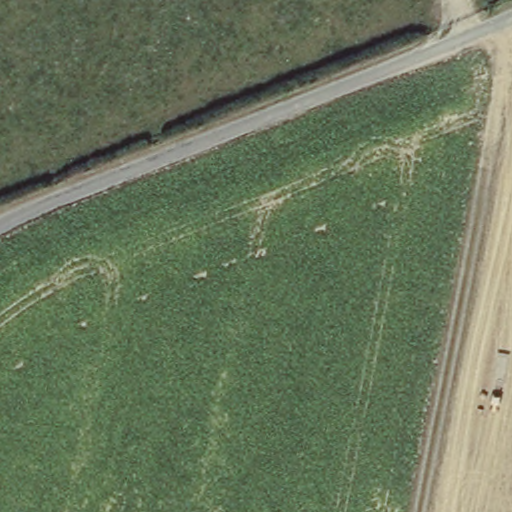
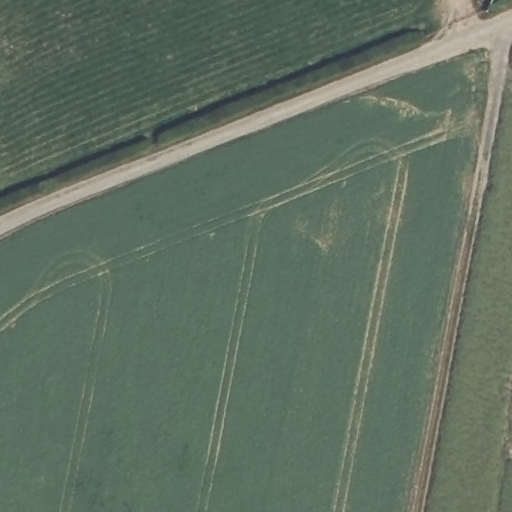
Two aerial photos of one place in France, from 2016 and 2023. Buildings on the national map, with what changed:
[]

